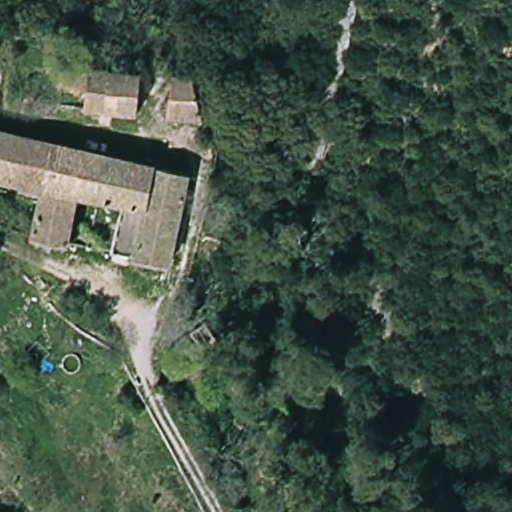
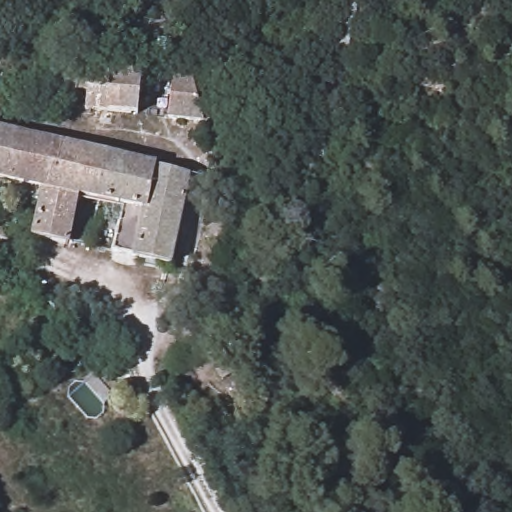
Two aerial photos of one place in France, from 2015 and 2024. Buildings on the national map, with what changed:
unchanged [(131,105),(87,103),(88,83),(59,81),(61,61),(133,65),(131,105)]
unchanged [(172,120),(175,78),(197,79),(207,122),(172,120)]
unchanged [(191,170),(171,261),(113,249),(122,204),(84,197),(72,240),(32,231),(41,188),(0,178),(0,123),(191,170)]

